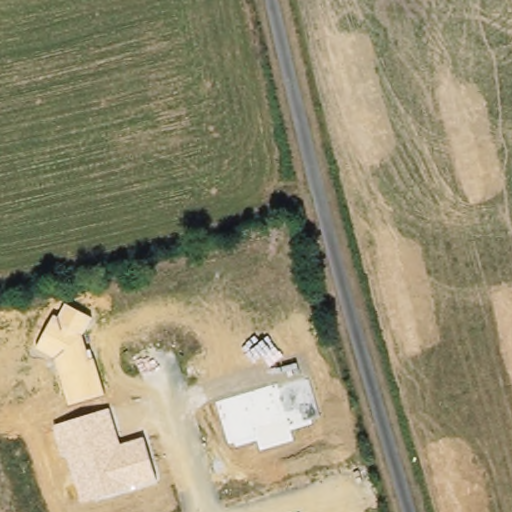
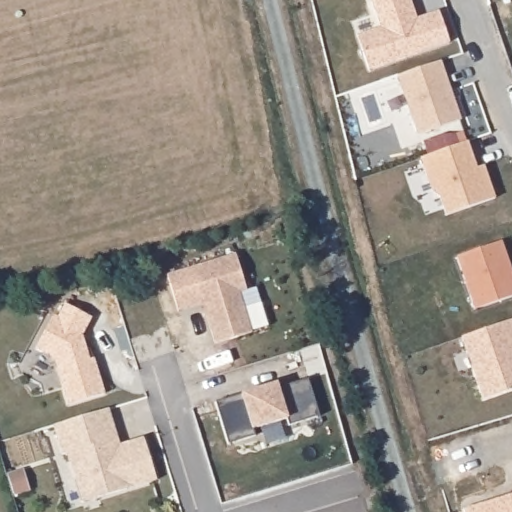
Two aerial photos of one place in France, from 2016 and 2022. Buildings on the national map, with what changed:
new [(438,10),(449,44),(369,70),(358,34),(381,26),(372,0),(412,0),(417,17),(438,10)]
new [(462,119),(417,134),(397,74),(442,58),(462,119)]
new [(476,166),(482,163),(493,199),(447,214),(440,194),(433,190),(422,156),(467,140),(476,166)]
new [(512,296),(477,308),(457,254),(502,238),(512,266),(512,296)]
new [(179,312),(168,276),(237,255),(247,291),(241,293),(252,333),(217,344),(207,316),(204,304),(179,312)]
unchanged [(56,358),(37,347),(53,315),(58,317),(65,304),(92,319),(82,336),(86,351),(91,350),(104,394),(70,404),(56,358)]
new [(462,336),(512,317),(512,390),(486,400),(462,336)]
new [(277,384),(279,389),(309,380),(321,417),(290,427),(287,420),(255,430),(257,437),(229,445),(216,403),(277,384)]
unchanged [(110,410),(121,445),(144,438),(156,482),(82,502),(67,454),(62,455),(55,426),(110,410)]

